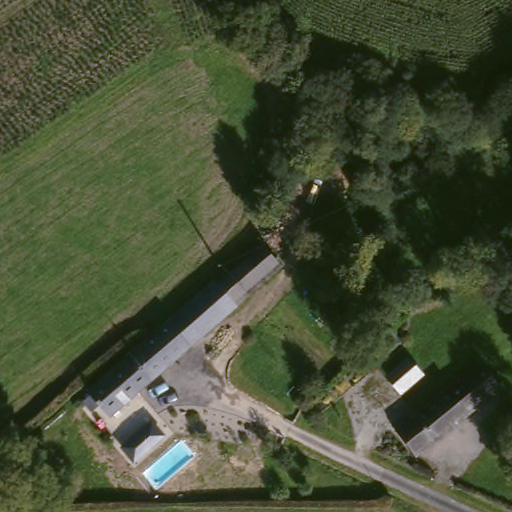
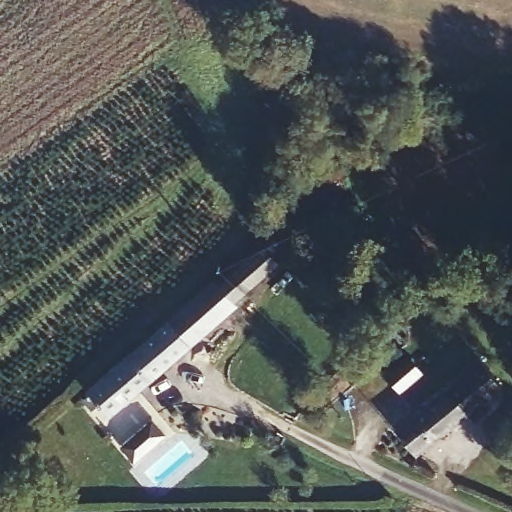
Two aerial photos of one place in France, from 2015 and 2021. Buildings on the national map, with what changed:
unchanged [(220,284),(265,252),(283,278),(237,311),(220,284)]
unchanged [(220,284),(237,311),(203,335),(183,310),(220,284)]
unchanged [(183,310),(203,335),(99,407),(79,380),(183,310)]
unchanged [(408,447),(392,424),(479,366),(494,389),(408,447)]

